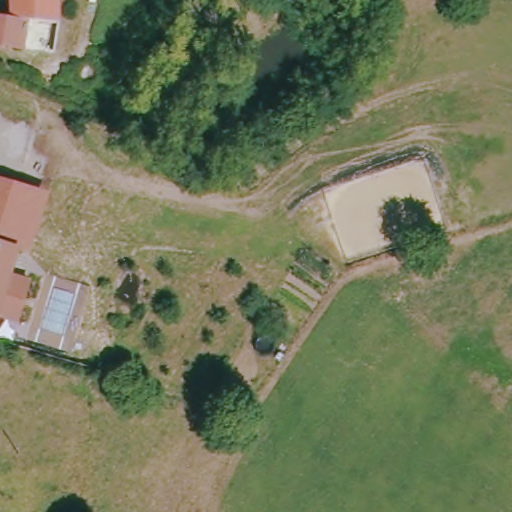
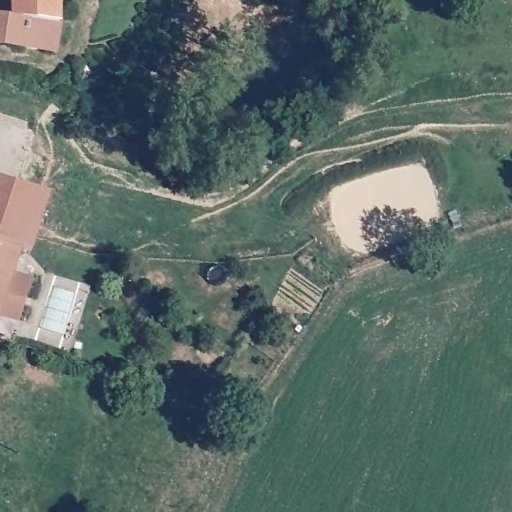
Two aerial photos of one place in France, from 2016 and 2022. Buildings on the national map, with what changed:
unchanged [(26,16),(11,14),(11,0),(61,0),(60,21),(26,16)]
unchanged [(11,14),(26,16),(22,42),(0,40),(0,12),(11,14)]
unchanged [(48,194),(30,255),(17,250),(18,245),(0,239),(0,179),(48,194)]
unchanged [(18,245),(0,312),(0,239),(18,245)]
unchanged [(29,280),(13,343),(0,340),(0,312),(8,282),(10,274),(29,280)]

